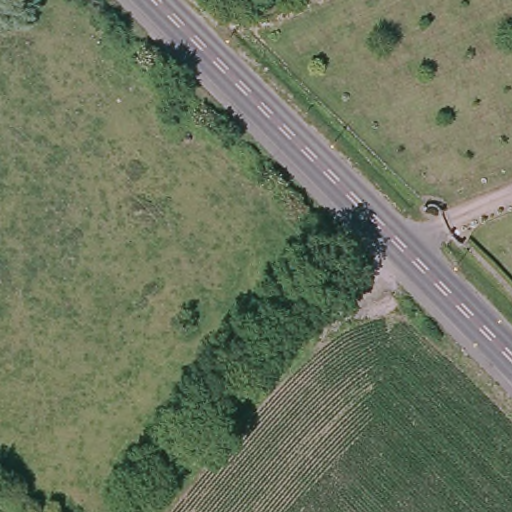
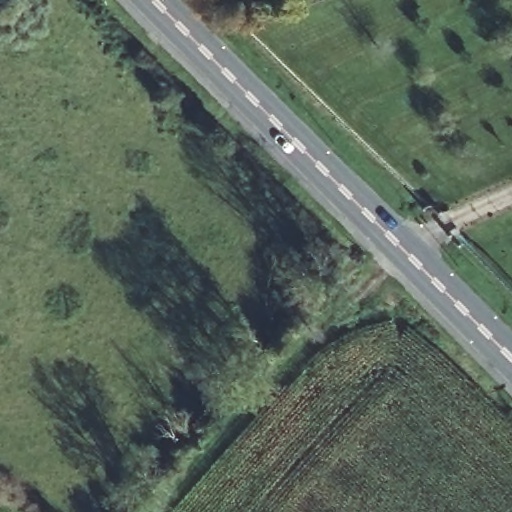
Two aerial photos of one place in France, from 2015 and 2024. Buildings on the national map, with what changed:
[]

